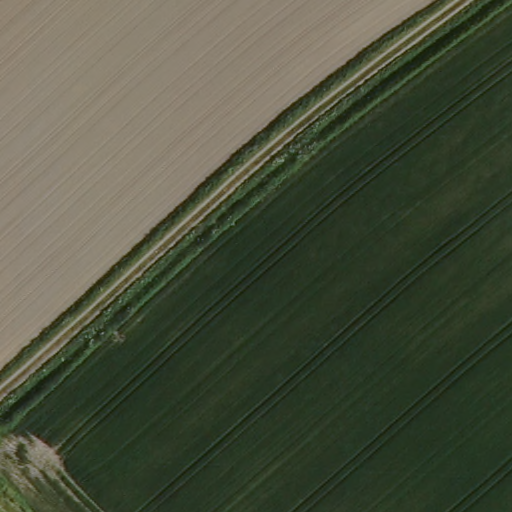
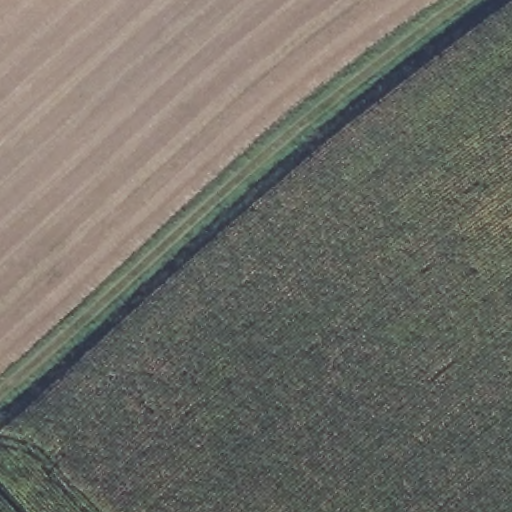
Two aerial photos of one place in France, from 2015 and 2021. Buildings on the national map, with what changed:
[]

